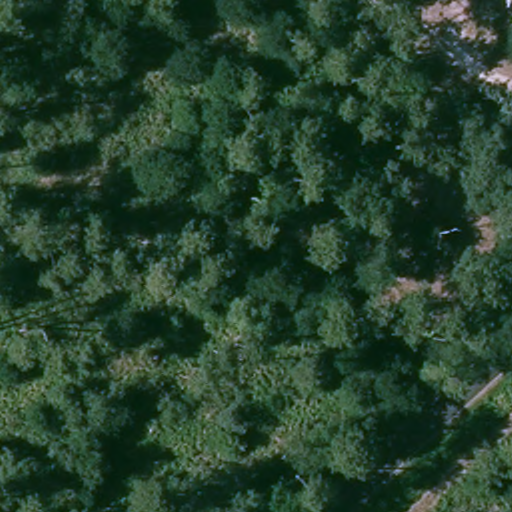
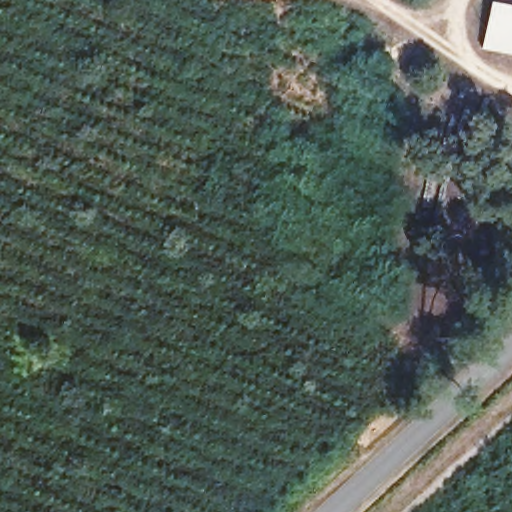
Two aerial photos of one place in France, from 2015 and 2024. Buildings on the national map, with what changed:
new [(482,48),(490,0),(493,0),(512,4),(512,54),(482,48)]

